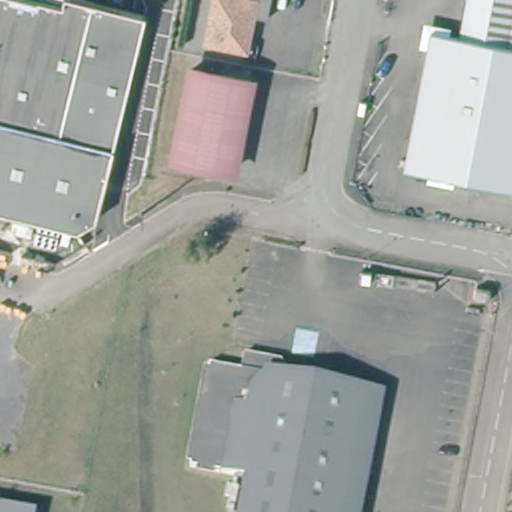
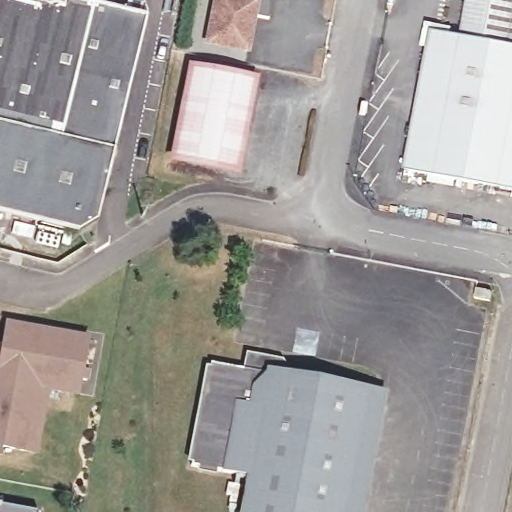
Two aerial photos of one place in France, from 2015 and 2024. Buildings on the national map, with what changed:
unchanged [(94,4),(62,133),(113,147),(107,170),(0,143),(0,0),(80,0),(94,4)]
unchanged [(206,45),(217,0),(272,0),(268,23),(252,20),(245,54),(206,45)]
unchanged [(435,25),(470,33),(477,0),(512,0),(512,188),(410,168),(435,25)]
unchanged [(145,16),(113,147),(62,133),(94,4),(145,16)]
unchanged [(234,167),(174,153),(190,67),(250,82),(234,167)]
unchanged [(107,170),(95,221),(76,231),(0,212),(0,143),(107,170)]
unchanged [(483,299),(471,296),(473,289),(485,292),(483,299)]
new [(2,353),(7,329),(87,343),(81,373),(88,374),(86,385),(80,383),(76,398),(46,392),(35,457),(0,450),(0,353),(2,353)]
unchanged [(250,349),(286,357),(298,383),(247,372),(250,349)]
unchanged [(368,397),(344,512),(243,512),(249,479),(192,466),(212,366),(247,372),(298,383),(368,397)]
unchanged [(385,413),(364,512),(344,512),(368,397),(385,413)]
unchanged [(37,511),(37,512),(0,512),(0,505),(37,511)]

